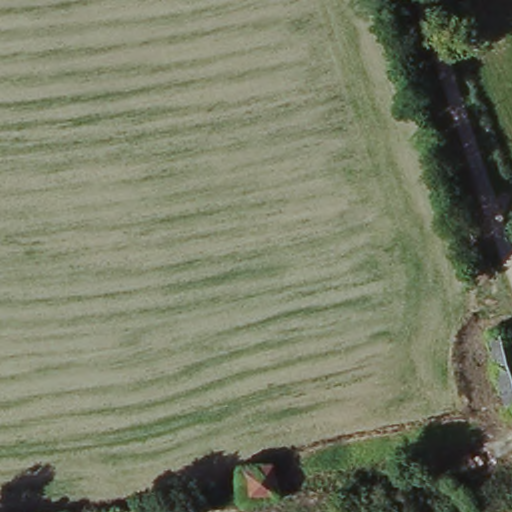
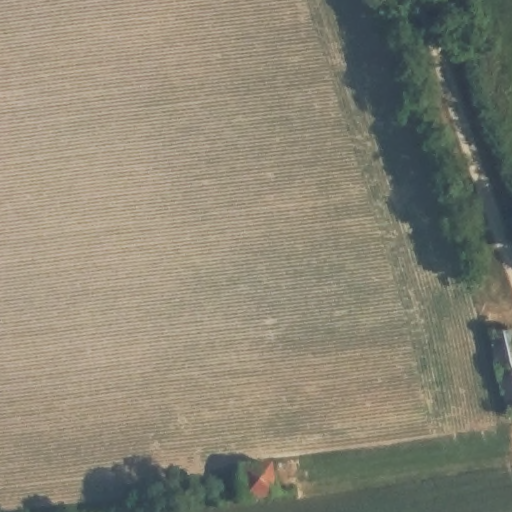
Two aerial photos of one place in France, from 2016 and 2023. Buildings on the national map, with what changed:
unchanged [(512,336),(512,403),(503,406),(477,335),(507,323),(512,336)]
unchanged [(240,469),(273,463),(278,495),(244,500),(240,469)]

